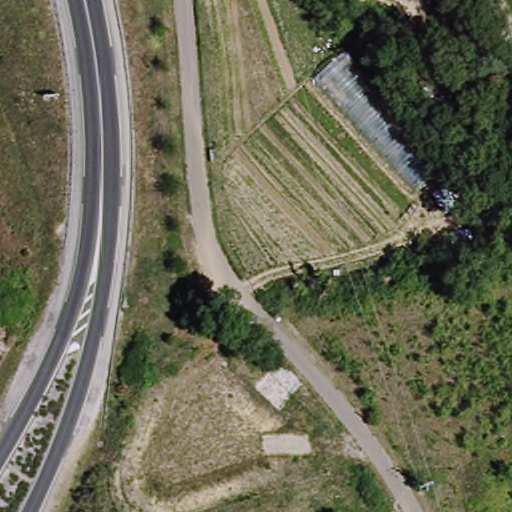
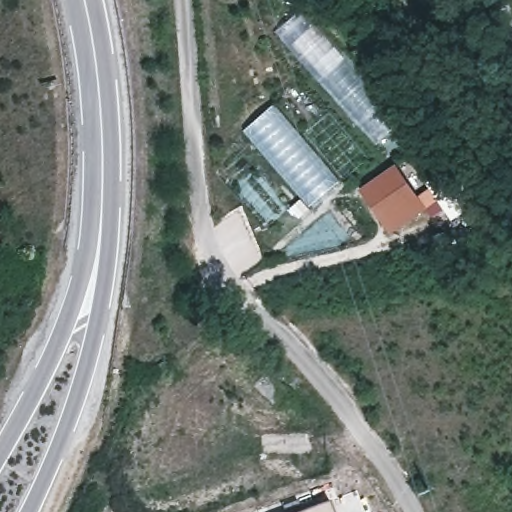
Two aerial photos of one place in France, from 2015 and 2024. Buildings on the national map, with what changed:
new [(274,33),(300,11),(402,123),(374,146),(274,33)]
new [(339,181),(309,207),(243,130),(273,105),(339,181)]
new [(390,231),(384,222),(373,206),(361,189),(374,181),(394,166),(418,200),(423,208),(390,231)]
new [(332,512),(299,512),(328,501),(332,512)]

